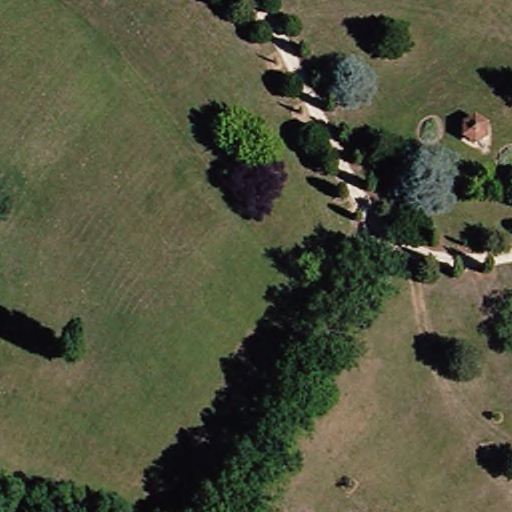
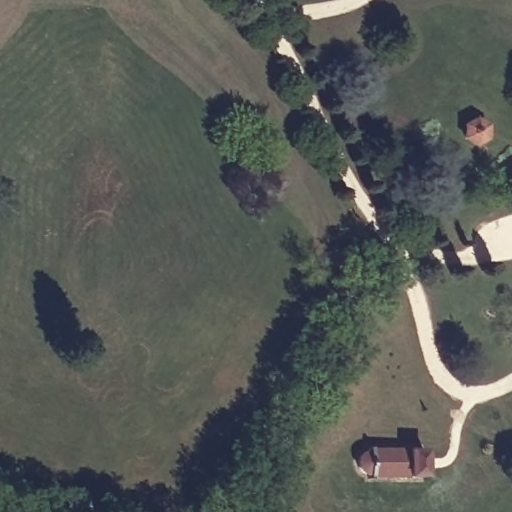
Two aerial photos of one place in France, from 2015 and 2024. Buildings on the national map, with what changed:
unchanged [(478,119),(488,125),(487,135),(477,140),(467,134),(467,124),(478,119)]
new [(365,458),(367,454),(370,452),(377,451),(377,449),(419,449),(419,451),(432,451),(432,475),(419,475),(419,476),(376,475),(376,473),(370,472),(366,468),(365,462),(365,458)]

